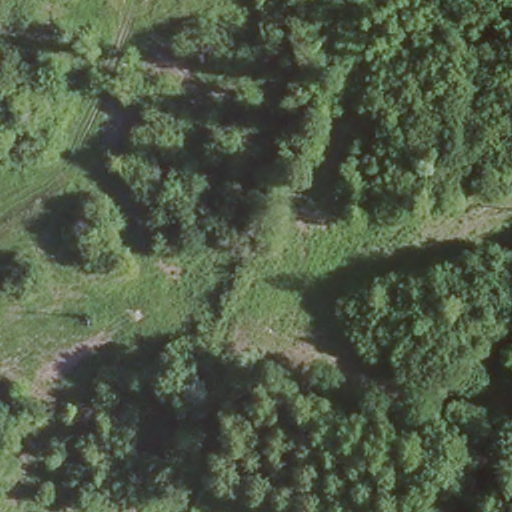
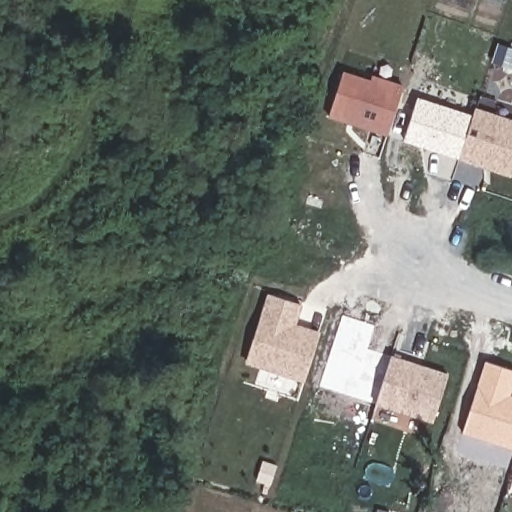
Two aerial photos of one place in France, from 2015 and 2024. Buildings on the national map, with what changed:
new [(512,48),(512,68),(491,61),(497,44),(512,48)]
new [(328,117),(343,71),(370,80),(372,74),(403,85),(387,136),(328,117)]
new [(512,119),(512,170),(509,177),(403,141),(418,97),(472,116),(475,106),(512,119)]
new [(247,363),(269,295),(301,306),(293,331),(300,333),(301,328),(320,334),(304,382),(247,363)]
new [(367,349),(386,355),(373,403),(319,386),(342,315),(374,326),(367,349)]
new [(301,328),(300,333),(293,331),(294,326),(301,328)]
new [(448,375),(433,422),(376,404),(391,357),(448,375)]
new [(484,362),(512,370),(512,388),(510,395),(512,395),(512,449),(462,433),(484,362)]

